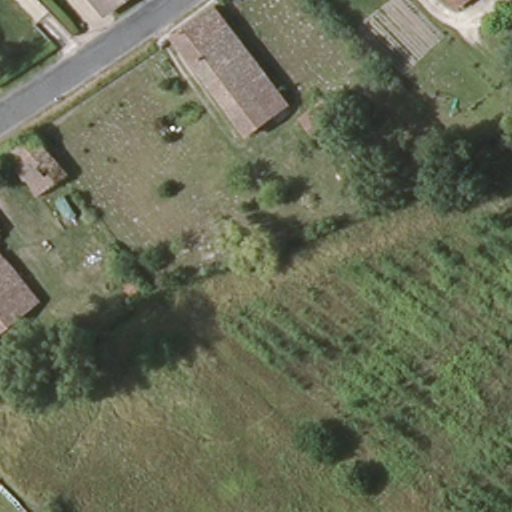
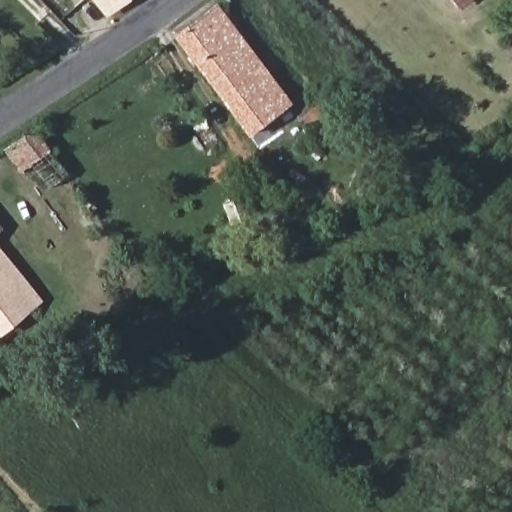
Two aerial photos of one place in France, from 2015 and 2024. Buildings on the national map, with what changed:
unchanged [(104,0),(123,0),(110,9),(104,0)]
unchanged [(456,0),(469,0),(460,7),(456,0)]
unchanged [(290,103),(251,134),(176,33),(215,5),(290,103)]
unchanged [(310,126),(302,115),(330,97),(337,106),(310,126)]
unchanged [(42,133),(56,153),(51,157),(70,181),(46,199),(10,153),(42,133)]
unchanged [(95,214),(70,232),(46,199),(70,181),(95,214)]
unchanged [(0,224),(2,227),(0,229),(0,224)]
unchanged [(0,249),(40,300),(0,330),(0,249)]

